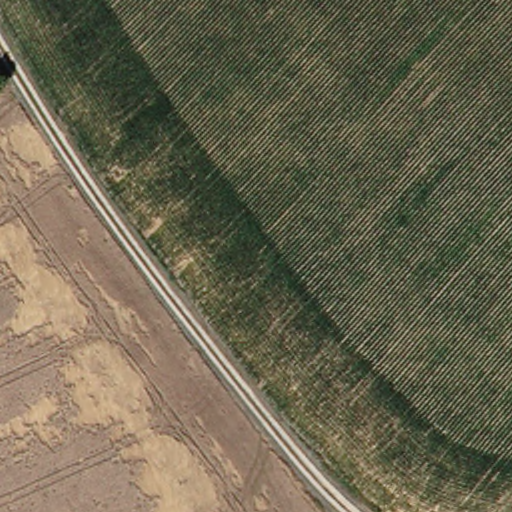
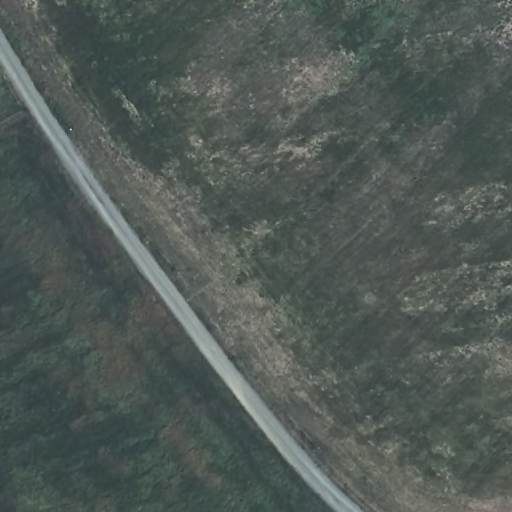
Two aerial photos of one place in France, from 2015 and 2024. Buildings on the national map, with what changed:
[]

